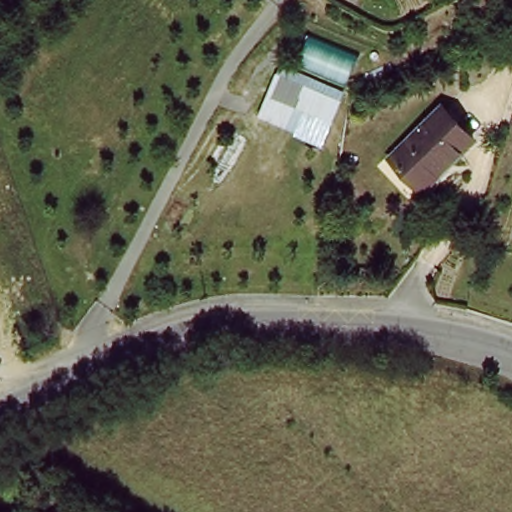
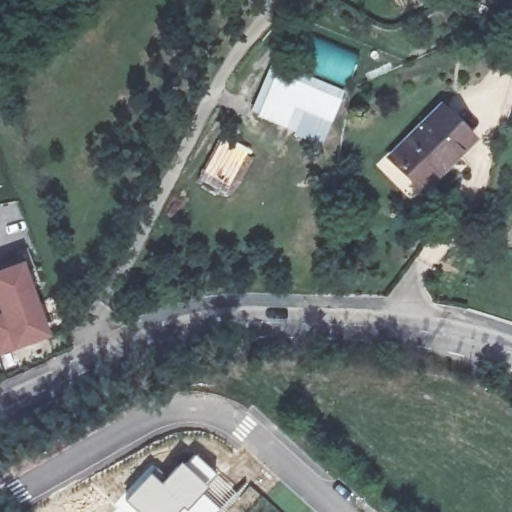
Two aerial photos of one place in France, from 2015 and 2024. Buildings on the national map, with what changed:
new [(512,38),(512,57),(507,40),(512,38)]
unchanged [(348,86),(304,66),(315,41),(358,57),(348,86)]
unchanged [(345,91),(322,148),(294,135),(295,132),(259,116),(281,65),(345,91)]
unchanged [(440,110),(473,142),(445,171),(439,166),(415,192),(386,164),(440,110)]
new [(29,252),(42,288),(33,287),(51,336),(15,349),(0,355),(0,310),(0,262),(29,252)]
new [(160,480),(179,461),(183,465),(193,453),(215,473),(203,490),(185,510),(181,506),(177,512),(129,512),(127,510),(120,505),(149,470),(160,480)]
new [(185,510),(203,490),(221,508),(217,512),(177,512),(181,506),(185,510)]
new [(129,512),(126,512),(127,510),(129,512)]

